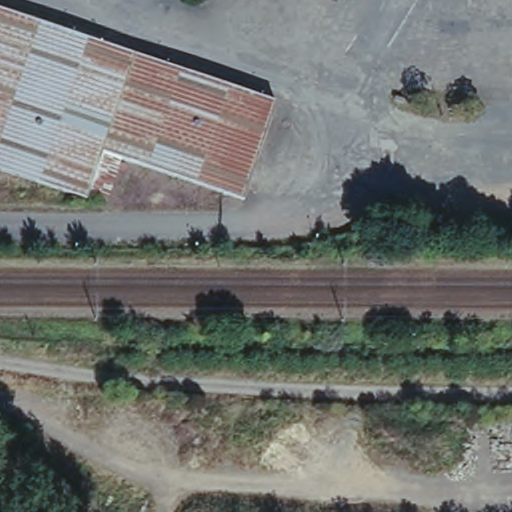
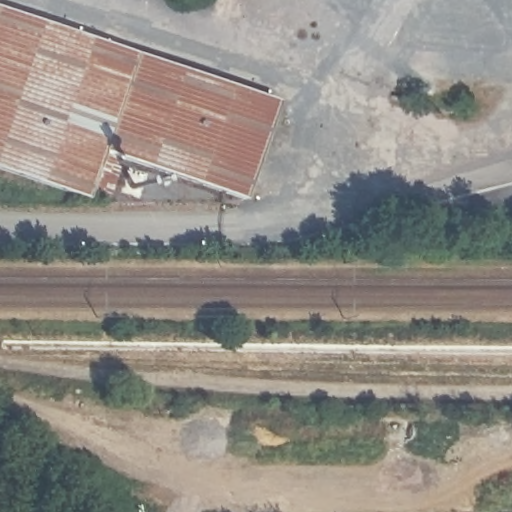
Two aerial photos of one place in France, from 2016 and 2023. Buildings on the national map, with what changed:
unchanged [(248,200),(126,157),(111,202),(92,196),(92,199),(0,168),(0,7),(280,102),(248,200)]

